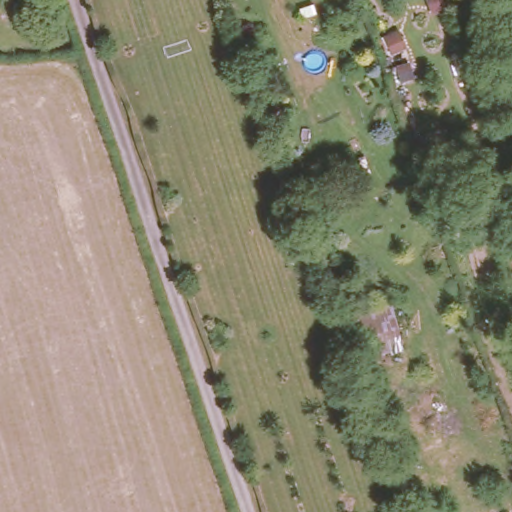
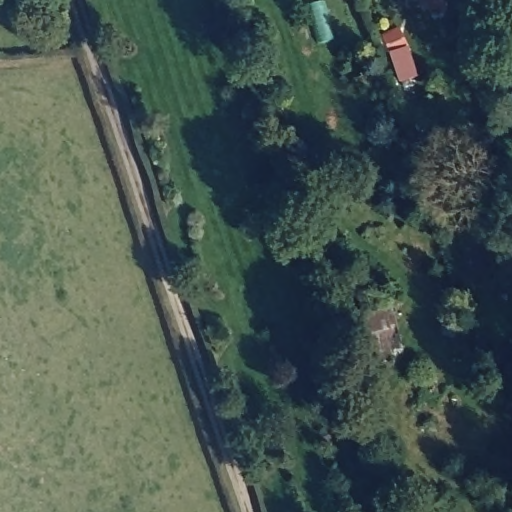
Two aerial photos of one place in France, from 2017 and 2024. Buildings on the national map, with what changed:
unchanged [(353,316),(394,307),(406,351),(384,355),(379,337),(359,343),(353,316)]

